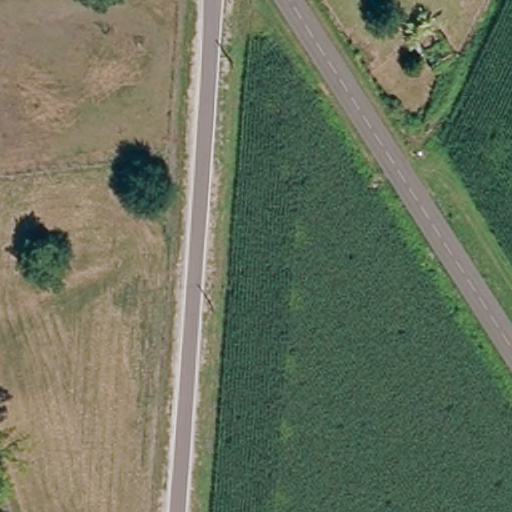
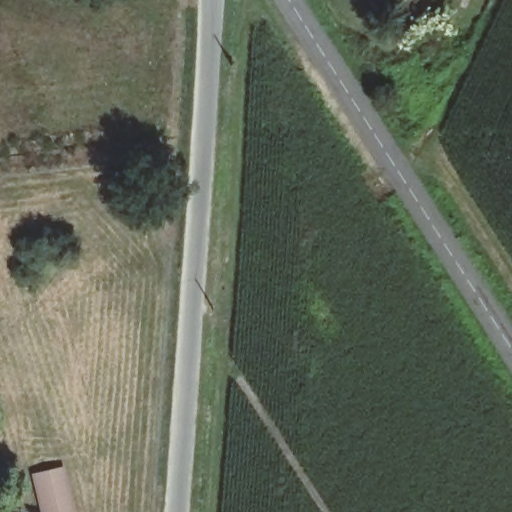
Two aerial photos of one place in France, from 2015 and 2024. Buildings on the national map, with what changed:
new [(64,465),(76,512),(42,512),(32,474),(64,465)]

